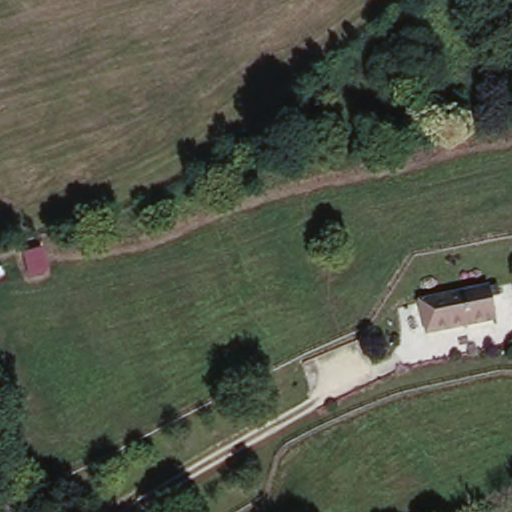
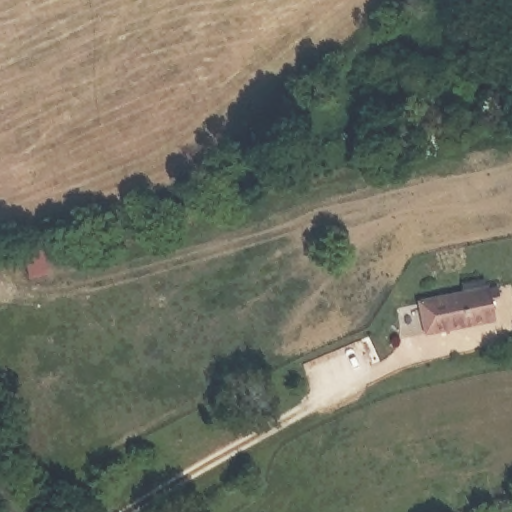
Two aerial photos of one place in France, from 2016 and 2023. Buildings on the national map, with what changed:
unchanged [(488,285),(493,311),(425,324),(420,298),(488,285)]

